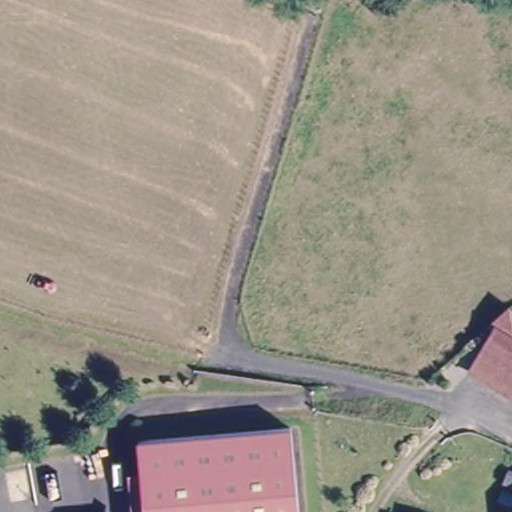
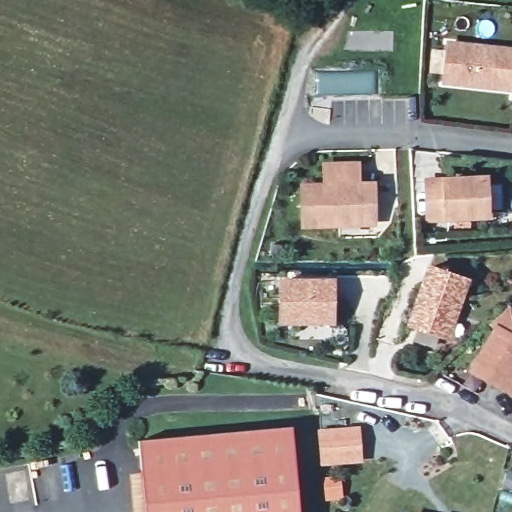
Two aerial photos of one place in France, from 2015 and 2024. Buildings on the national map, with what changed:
new [(512,86),(511,86),(510,92),(441,86),(445,39),(512,47),(512,86)]
new [(321,182),(321,162),(359,160),(360,182),(376,182),(378,226),(301,231),(299,182),(321,182)]
new [(441,177),(487,174),(490,217),(445,221),(425,222),(423,178),(441,177)]
new [(470,277),(451,339),(407,327),(425,262),(470,277)]
new [(335,325),(278,325),(278,277),(336,276),(335,325)]
unchanged [(490,329),(486,326),(504,308),(512,313),(512,324),(505,336),(512,340),(512,396),(466,371),(490,329)]
new [(364,463),(321,467),(318,430),(359,427),(364,463)]
unchanged [(293,512),(140,512),(133,447),(286,433),(293,512)]

